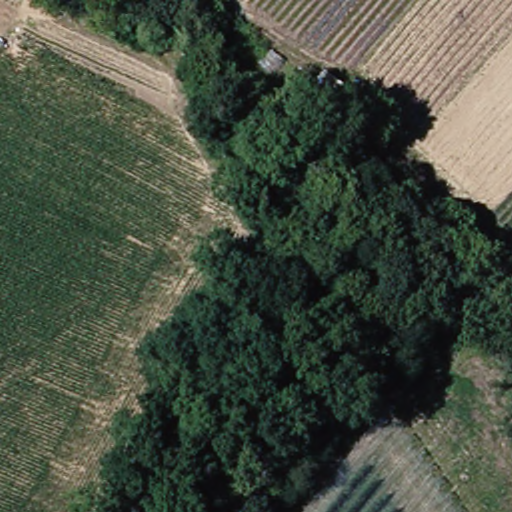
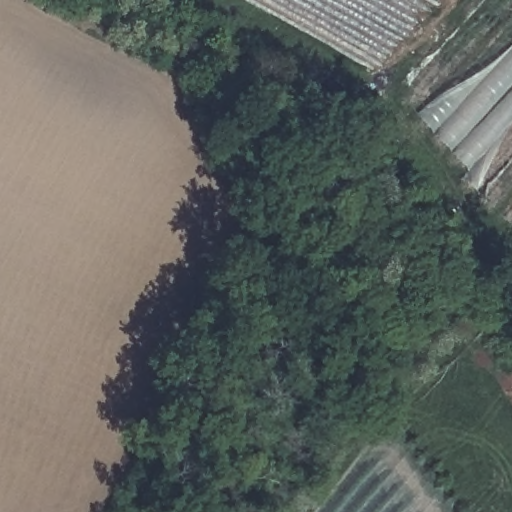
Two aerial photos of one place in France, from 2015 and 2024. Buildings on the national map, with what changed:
new [(512,120),(465,171),(432,135),(512,47),(512,120)]

